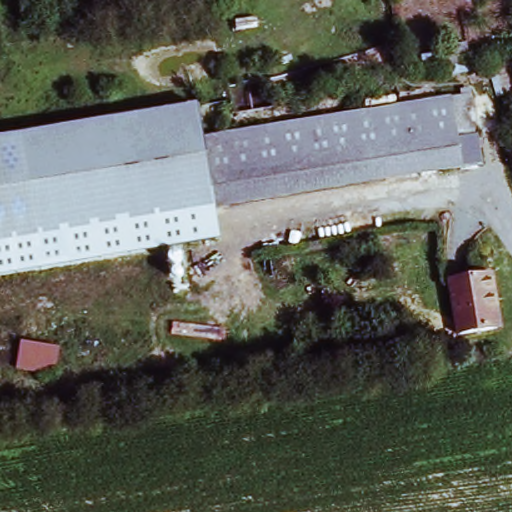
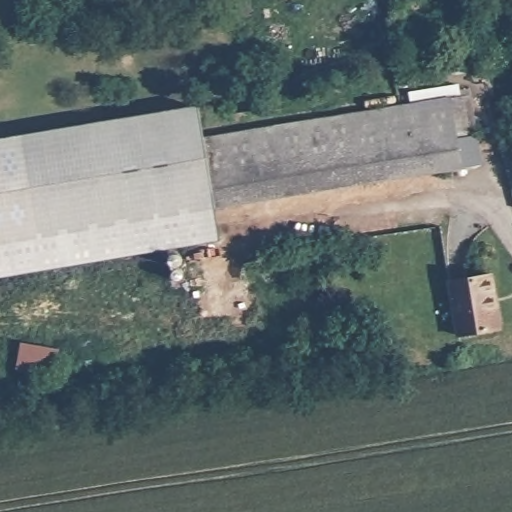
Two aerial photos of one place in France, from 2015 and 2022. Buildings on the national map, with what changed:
unchanged [(443,65),(440,46),(466,42),(470,61),(443,65)]
unchanged [(208,204),(197,136),(445,98),(465,94),(471,134),(451,137),(456,165),(208,204)]
unchanged [(0,247),(0,137),(199,102),(205,135),(197,136),(208,204),(215,203),(216,210),(0,247)]
unchanged [(495,326),(456,332),(448,280),(490,273),(493,291),(498,326),(495,326)]
unchanged [(54,373),(15,366),(19,335),(57,343),(54,373)]

